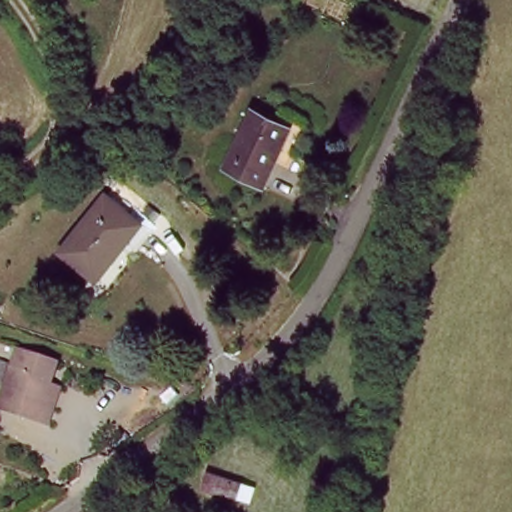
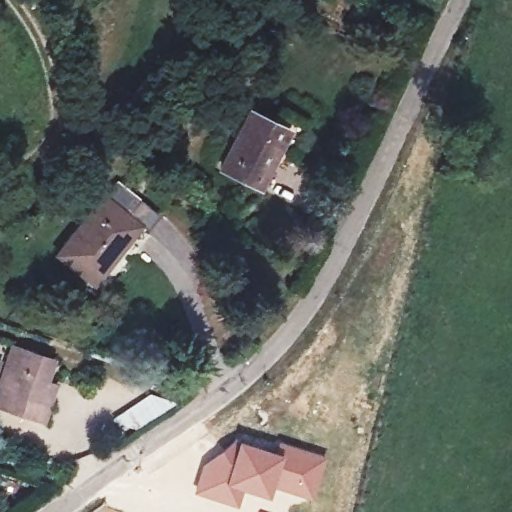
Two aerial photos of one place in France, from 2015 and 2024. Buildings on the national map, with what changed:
unchanged [(225,164),(252,106),(291,127),(263,184),(225,164)]
unchanged [(60,254),(101,196),(134,220),(93,278),(60,254)]
unchanged [(37,399),(46,402),(40,418),(0,402),(0,377),(14,341),(53,357),(37,399)]
new [(150,391),(171,401),(170,402),(172,405),(123,437),(111,419),(150,391)]
new [(202,463),(230,441),(233,438),(278,451),(281,442),(326,457),(315,500),(270,487),(267,496),(243,489),(235,508),(191,494),(202,463)]

